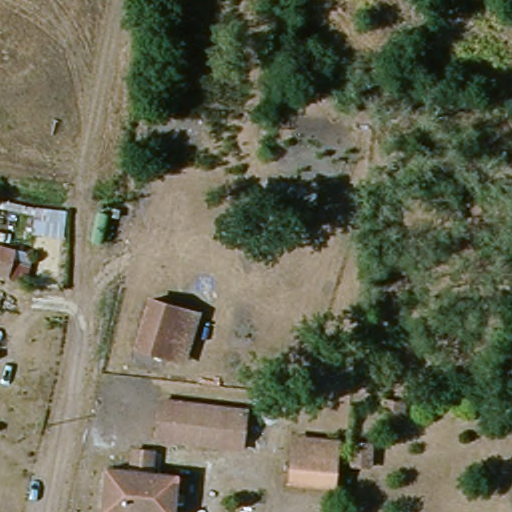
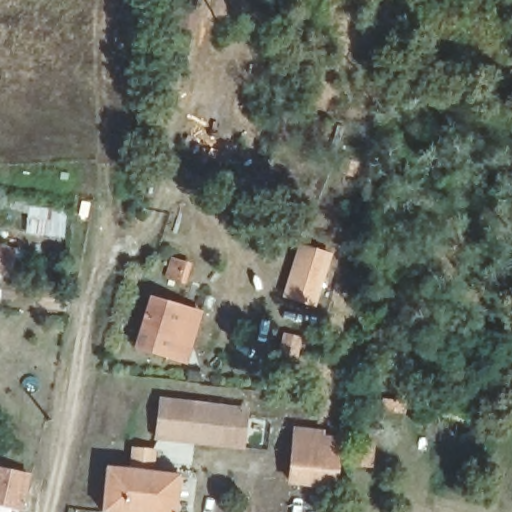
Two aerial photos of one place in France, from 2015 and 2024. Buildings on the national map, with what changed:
unchanged [(0,272),(0,240),(2,240),(6,226),(30,233),(24,260),(32,263),(31,281),(0,272)]
new [(283,291),(300,244),(332,253),(315,306),(283,291)]
unchanged [(152,289),(204,308),(190,359),(137,345),(152,289)]
unchanged [(227,441),(157,434),(161,393),(232,401),(249,403),(246,442),(227,441)]
unchanged [(295,477),(299,432),(344,437),(340,483),(295,477)]
unchanged [(110,463),(152,468),(181,472),(176,512),(134,512),(104,508),(110,463)]
new [(30,472),(21,510),(0,505),(0,467),(30,472)]

